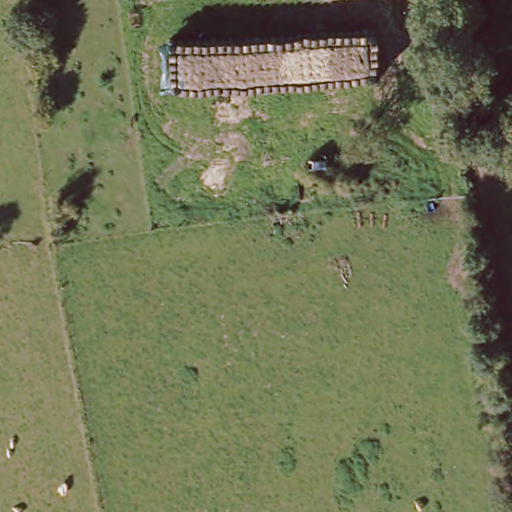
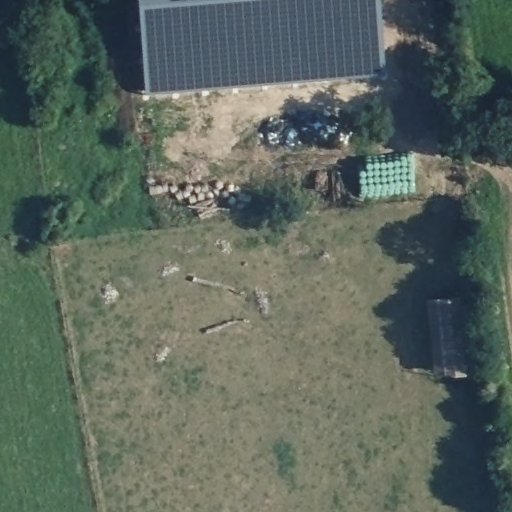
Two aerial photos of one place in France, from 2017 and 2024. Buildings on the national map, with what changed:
new [(137,0),(379,0),(386,76),(146,95),(137,0)]

